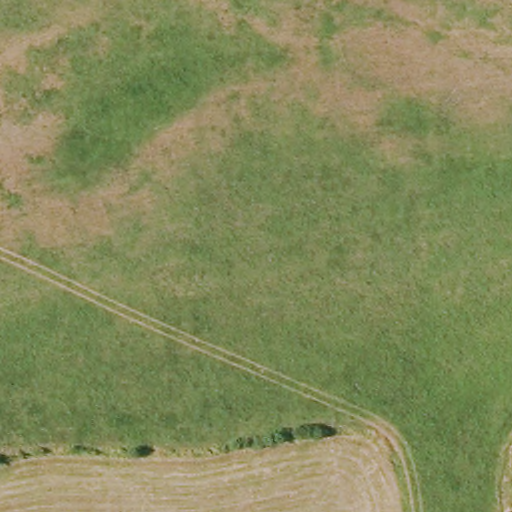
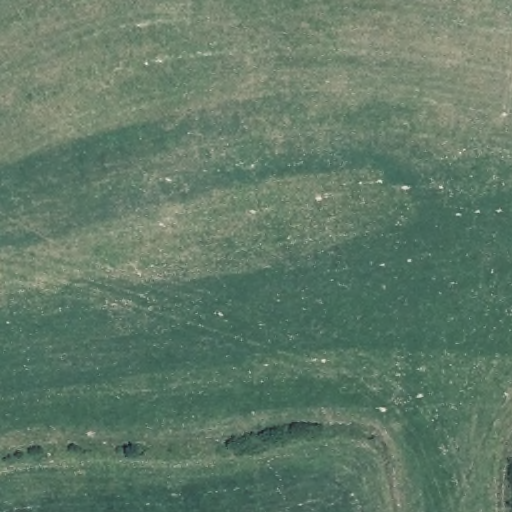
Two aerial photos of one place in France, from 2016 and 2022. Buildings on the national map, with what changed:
[]

